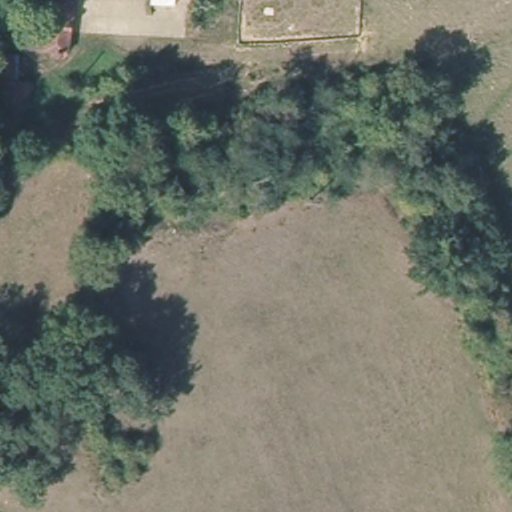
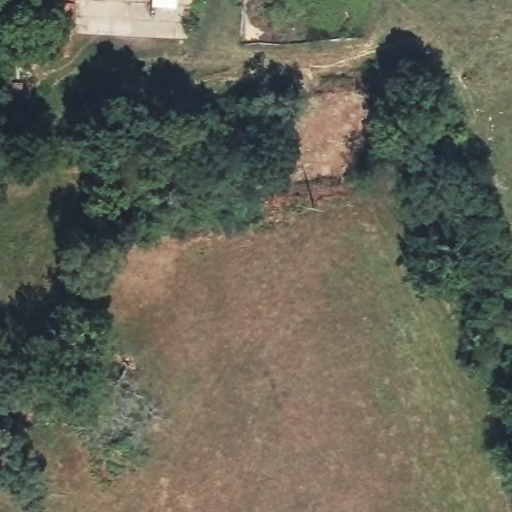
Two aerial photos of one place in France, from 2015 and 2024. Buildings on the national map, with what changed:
unchanged [(31,20),(48,20),(51,0),(78,0),(73,50),(28,44),(31,20)]
unchanged [(153,0),(175,0),(175,5),(153,5),(153,0)]
unchanged [(3,111),(0,112),(0,81),(5,81),(3,111)]

